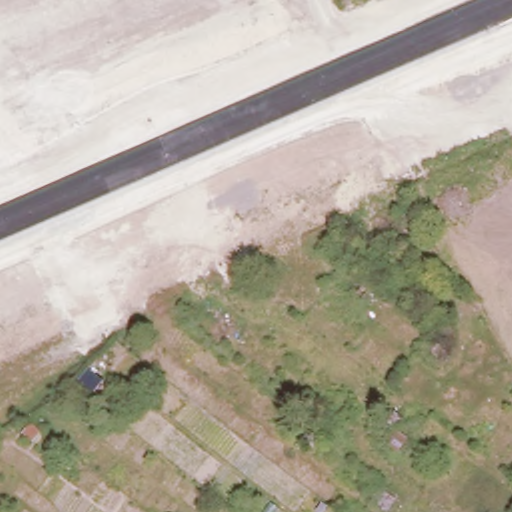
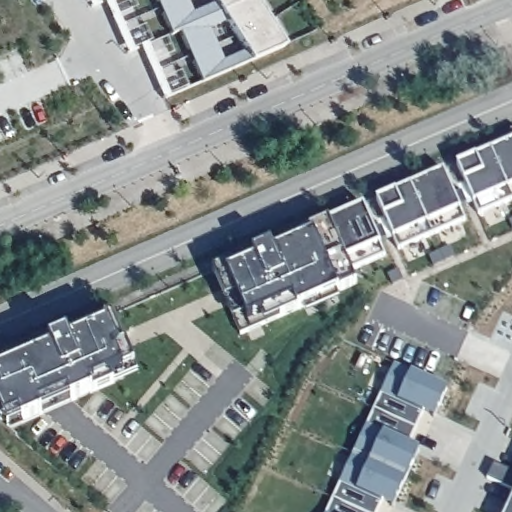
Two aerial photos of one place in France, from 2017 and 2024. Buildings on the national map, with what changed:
new [(185,2),(190,14),(213,4),(220,14),(170,35),(160,13),(159,9),(155,2),(155,0),(184,0),(185,2)]
new [(250,62),(200,84),(191,62),(189,57),(186,51),(178,31),(220,14),(213,4),(211,0),(253,0),(268,23),(235,37),(225,21),(206,29),(211,40),(214,46),(216,52),(221,62),(245,52),(250,62)]
new [(235,37),(268,23),(284,47),(250,62),(245,52),(235,37)]
demolished [(342,94),(352,101),(322,130),(312,121),(330,106),(342,94)]
new [(332,227),(329,222),(354,211),(363,207),(372,225),(375,232),(372,227),(374,227),(385,221),(376,201),(444,172),(452,192),(465,187),(456,166),(495,150),(512,142),(512,203),(507,205),(478,217),(473,206),(467,209),(460,211),(465,223),(399,252),(393,241),(387,242),(380,246),(386,257),(351,273),(332,227)]
demolished [(245,191),(280,154),(295,165),(267,194),(278,204),(270,211),(260,202),(245,191)]
demolished [(230,238),(214,224),(224,214),(240,228),(230,238)]
new [(270,247),(274,254),(332,227),(351,273),(357,286),(240,336),(212,272),(270,247)]
new [(135,367),(110,377),(114,384),(9,430),(0,422),(0,362),(112,316),(135,367)]
new [(423,413),(416,429),(374,410),(395,365),(447,389),(439,408),(434,418),(423,413)]
demolished [(91,396),(79,383),(90,373),(102,386),(91,396)]
new [(406,479),(354,455),(374,410),(416,429),(409,445),(419,450),(415,461),(406,479)]
new [(397,497),(387,492),(382,503),(377,512),(361,512),(333,499),(354,455),(406,479),(397,497)]
new [(487,480),(493,465),(512,473),(512,492),(487,480)]
new [(387,492),(392,495),(397,497),(397,498),(393,508),(382,503),(387,492)]
new [(505,512),(512,496),(512,512),(505,512)]
new [(361,512),(327,512),(333,499),(361,512)]

